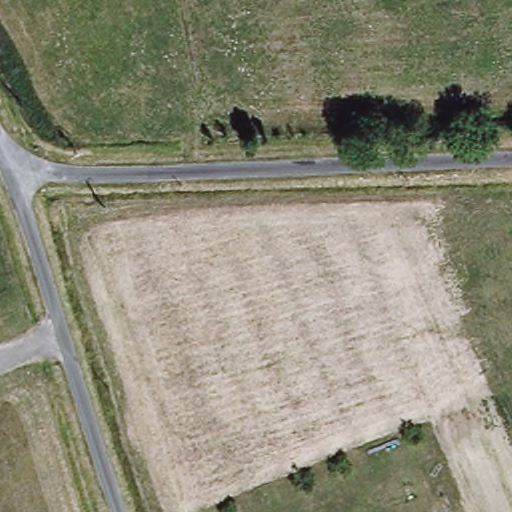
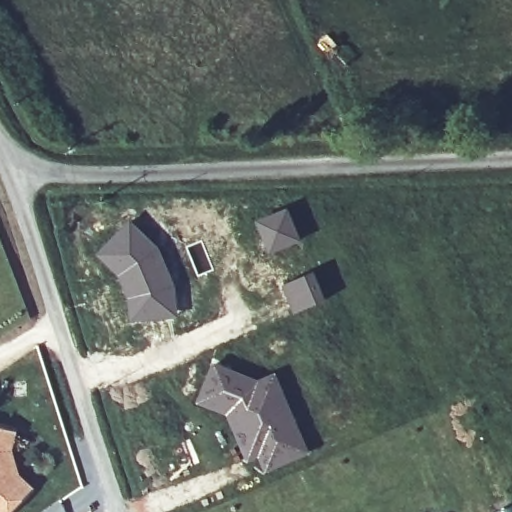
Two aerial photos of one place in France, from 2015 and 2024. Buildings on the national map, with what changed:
new [(127,218),(161,253),(175,285),(177,319),(127,324),(122,298),(115,278),(93,254),(127,218)]
new [(313,271),(325,300),(293,314),(280,285),(313,271)]
new [(211,360),(257,377),(275,371),(311,454),(260,478),(245,459),(225,416),(194,404),(211,360)]
new [(15,432),(11,451),(20,474),(35,487),(11,512),(0,512),(0,428),(15,432)]

